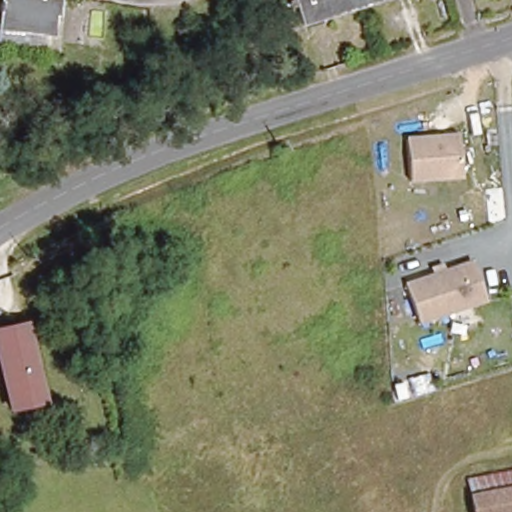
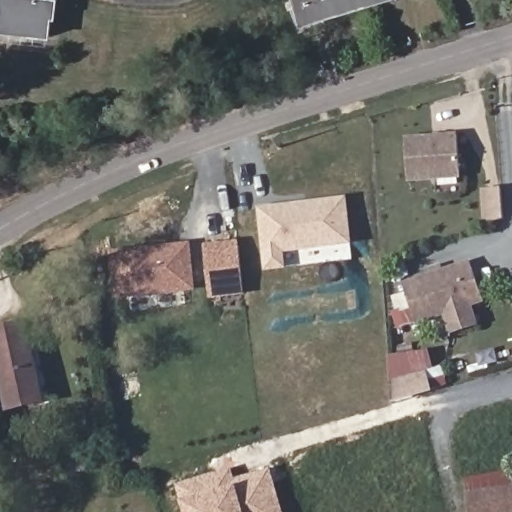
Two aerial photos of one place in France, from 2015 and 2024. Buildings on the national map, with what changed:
unchanged [(49,50),(0,44),(0,0),(57,0),(50,38),(49,50)]
unchanged [(293,0),(384,0),(302,27),(293,0)]
unchanged [(410,184),(407,138),(457,134),(460,180),(410,184)]
new [(497,189),(500,222),(484,227),(481,190),(497,189)]
new [(287,270),(264,272),(257,208),(347,197),(351,246),(286,254),(287,270)]
new [(211,301),(206,245),(239,242),(245,297),(211,301)]
new [(186,248),(187,262),(190,292),(113,298),(110,255),(172,249),(186,248)]
unchanged [(485,305),(418,326),(402,282),(470,262),(485,305)]
unchanged [(5,404),(0,369),(0,326),(29,322),(39,399),(5,404)]
new [(422,378),(427,393),(391,405),(388,387),(422,378)]
new [(181,502),(176,485),(231,467),(236,480),(270,469),(283,512),(183,512),(181,502)]
unchanged [(465,484),(512,472),(512,512),(470,512),(465,484)]

